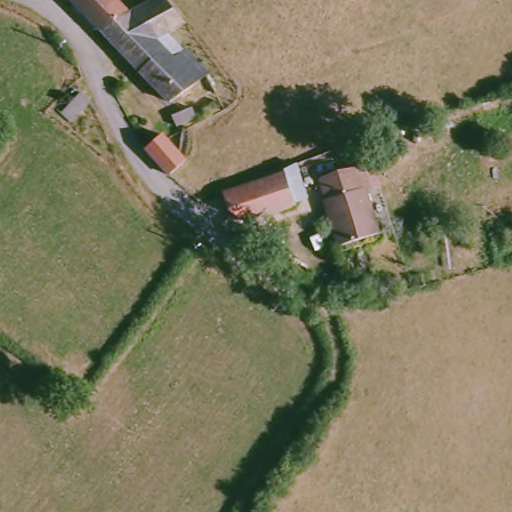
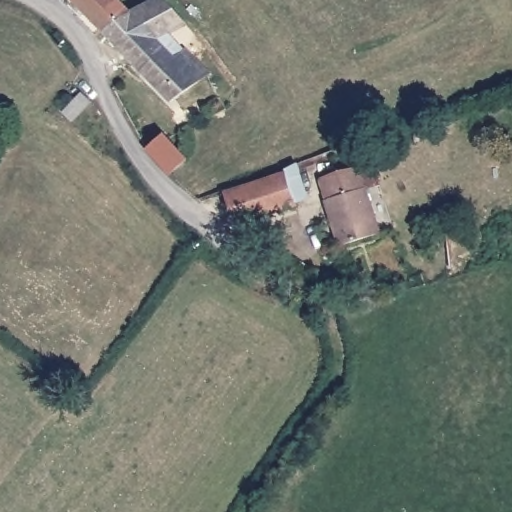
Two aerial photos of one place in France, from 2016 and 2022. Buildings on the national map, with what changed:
unchanged [(132,14),(106,35),(72,0),(118,0),(132,14)]
unchanged [(132,14),(136,17),(163,0),(168,0),(179,20),(153,36),(173,59),(183,50),(206,76),(176,105),(106,35),(132,14)]
unchanged [(78,113),(68,104),(85,88),(93,99),(78,113)]
unchanged [(167,131),(189,159),(174,175),(149,146),(167,131)]
unchanged [(308,200),(249,228),(233,197),(294,169),(308,200)]
unchanged [(373,194),(379,240),(338,247),(329,200),(334,199),(331,181),(336,177),(382,170),(386,192),(373,194)]

